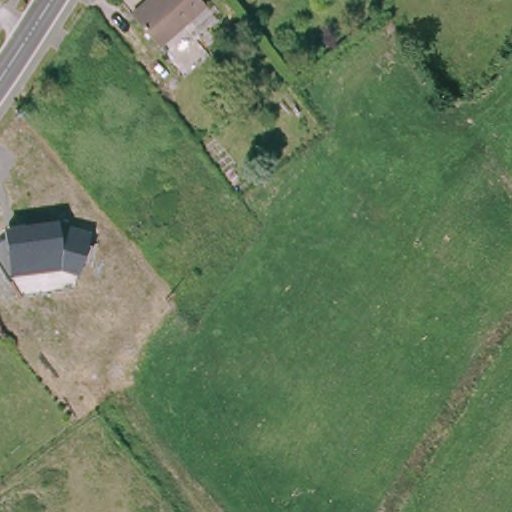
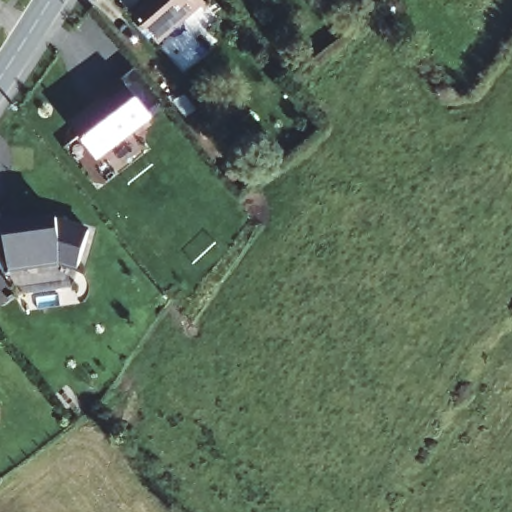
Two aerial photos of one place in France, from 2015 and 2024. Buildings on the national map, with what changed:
unchanged [(138,0),(197,0),(200,5),(155,41),(129,7),(138,0)]
new [(153,119),(99,161),(70,124),(107,94),(105,91),(120,79),(153,119)]
unchanged [(60,267),(12,274),(7,277),(0,265),(0,236),(4,232),(3,224),(56,216),(90,229),(77,273),(60,267)]

